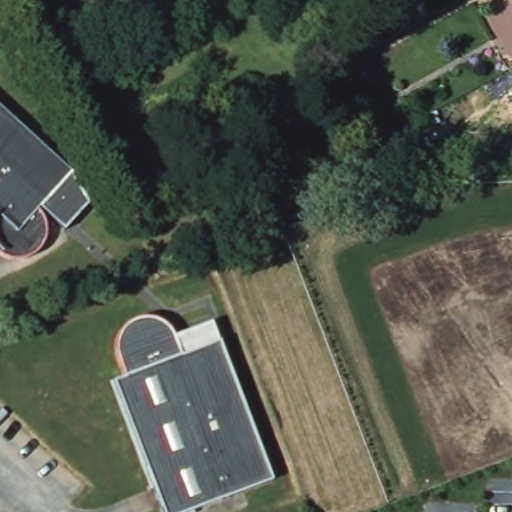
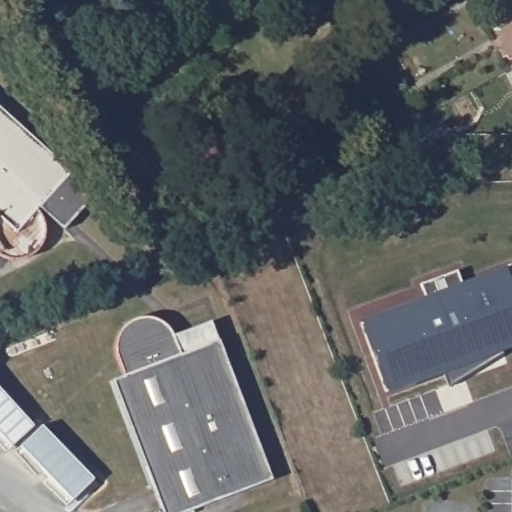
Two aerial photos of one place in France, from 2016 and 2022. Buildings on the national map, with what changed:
unchanged [(373,50),(388,77),(372,86),(358,62),(357,59),(373,50)]
unchanged [(342,81),(355,105),(340,112),(327,90),(342,81)]
unchanged [(82,173),(49,211),(53,216),(55,220),(57,225),(58,227),(58,230),(58,235),(58,240),(56,245),(54,249),(52,252),(48,256),(44,258),(38,262),(34,262),(30,263),(25,263),(21,262),(17,261),(13,259),(9,257),(6,254),(2,250),(0,245),(0,226),(1,221),(3,217),(6,214),(0,208),(0,98),(82,173)]
unchanged [(82,173),(101,200),(65,233),(57,225),(55,220),(53,216),(49,211),(82,173)]
new [(448,382),(444,371),(389,392),(364,327),(428,302),(422,286),(433,282),(458,272),(465,288),(507,272),(512,285),(512,345),(503,348),(506,355),(451,389),(448,382)]
unchanged [(188,512),(164,512),(112,382),(125,375),(120,363),(118,352),(118,342),(121,335),(127,328),(129,325),(137,322),(154,322),(167,327),(177,337),(213,321),(272,480),(188,512)]

